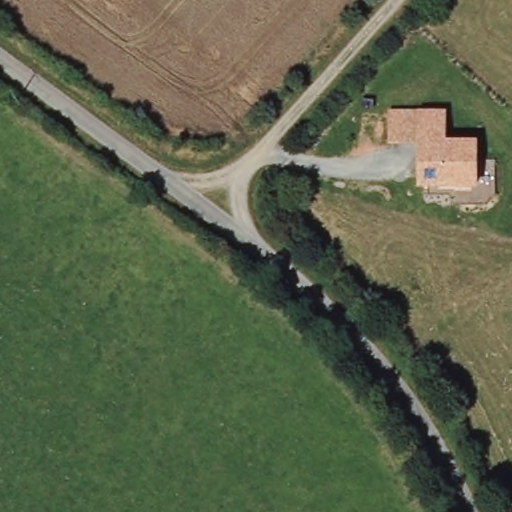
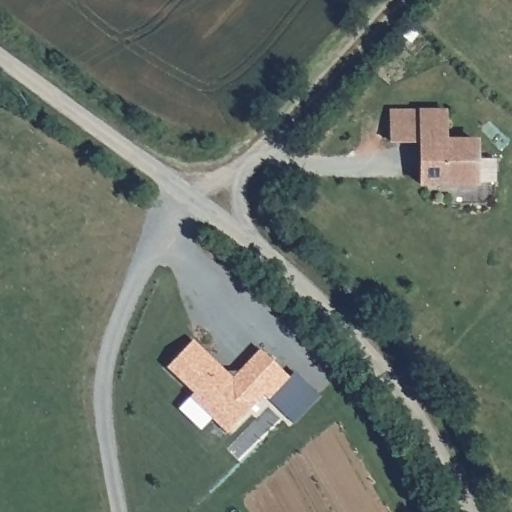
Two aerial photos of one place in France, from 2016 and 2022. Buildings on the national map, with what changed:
unchanged [(415,145),(386,144),(387,109),(446,109),(446,139),(477,138),(477,186),(416,186),(415,145)]
new [(191,340),(231,378),(259,349),(289,378),(294,372),(319,394),(293,423),(264,395),(227,433),(188,397),(192,393),(166,368),(191,340)]

